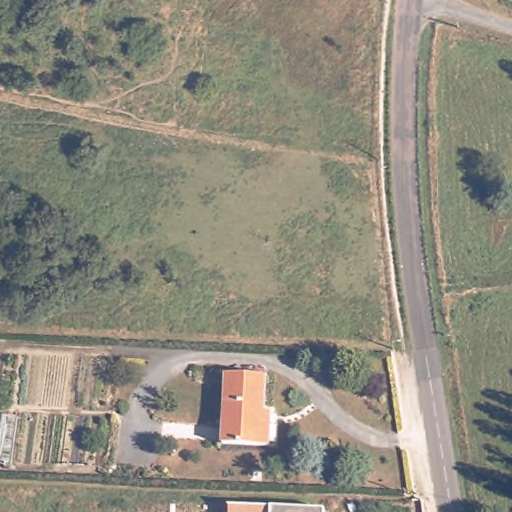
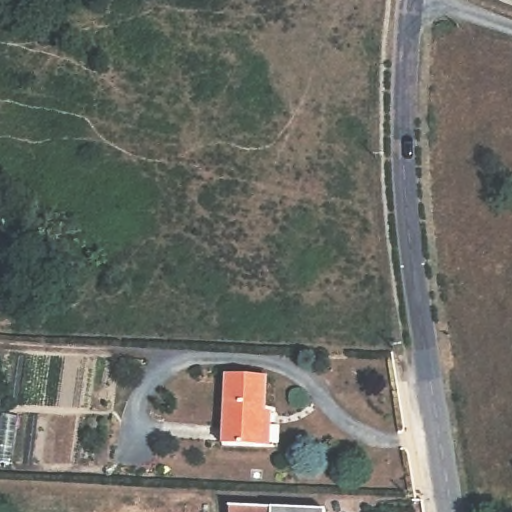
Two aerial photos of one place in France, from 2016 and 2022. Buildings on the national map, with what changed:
unchanged [(269,417),(275,418),(273,442),(227,440),(231,370),(271,372),(269,417)]
unchanged [(10,463),(0,462),(0,428),(2,415),(17,417),(10,463)]
unchanged [(326,511),(326,512),(231,512),(231,507),(326,511)]

